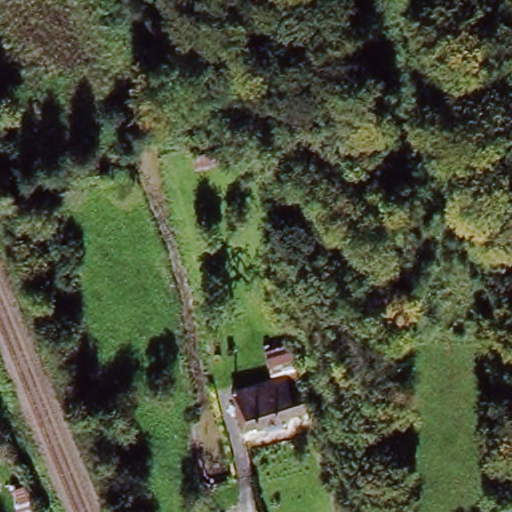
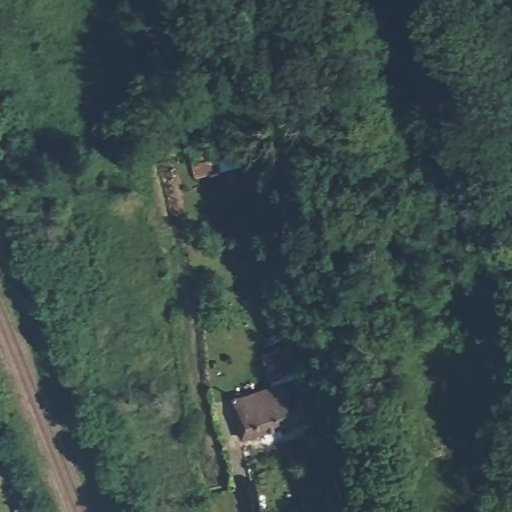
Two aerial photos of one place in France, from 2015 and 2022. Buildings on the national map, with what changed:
unchanged [(238,399),(272,388),(269,359),(294,353),(312,418),(245,443),(238,399)]

